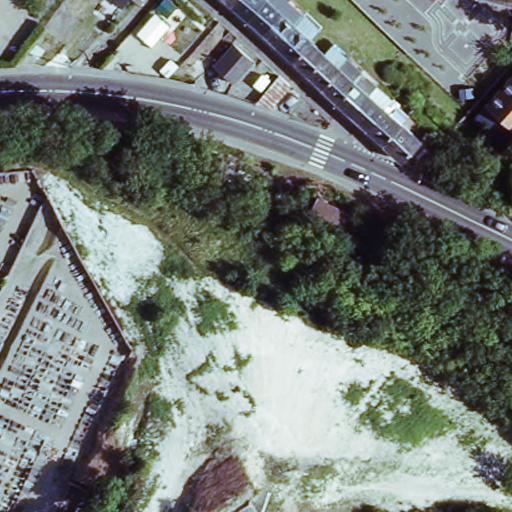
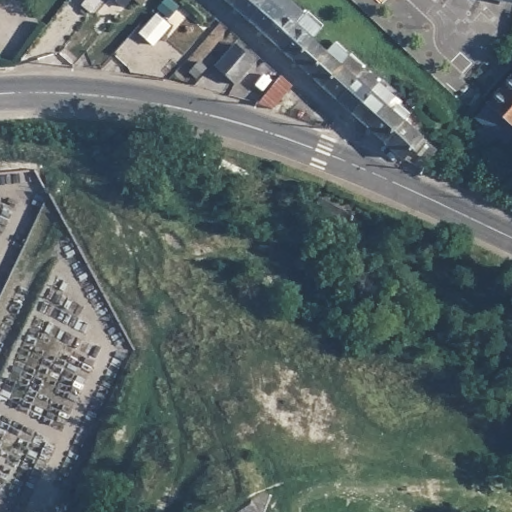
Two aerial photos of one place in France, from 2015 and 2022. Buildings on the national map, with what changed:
unchanged [(282,10),(292,0),(302,9),(306,13),(297,23),(312,37),(327,50),(330,53),(342,63),(350,55),(356,61),(365,68),(380,81),(395,95),(387,103),(403,118),(422,135),(422,136),(425,138),(417,149),(414,146),(404,156),(404,155),(384,138),(368,124),(352,110),(337,97),(323,84),(308,71),(293,58),(277,44),(262,31),(249,18),(234,5),(228,0),(271,0),(282,10)]
unchanged [(503,0),(512,0),(512,2),(503,0)]
unchanged [(236,80),(217,63),(237,41),(256,57),(236,80)]
unchanged [(504,125),(497,134),(485,124),(492,116),(484,107),(512,75),(512,132),(504,125)]
unchanged [(293,87),(274,110),(259,105),(259,104),(282,77),(293,87)]
unchanged [(420,166),(414,161),(430,143),(436,148),(420,166)]
unchanged [(352,215),(342,234),(307,217),(317,199),(352,215)]

